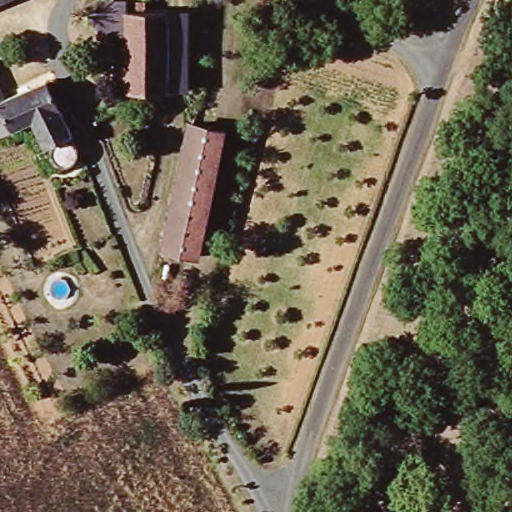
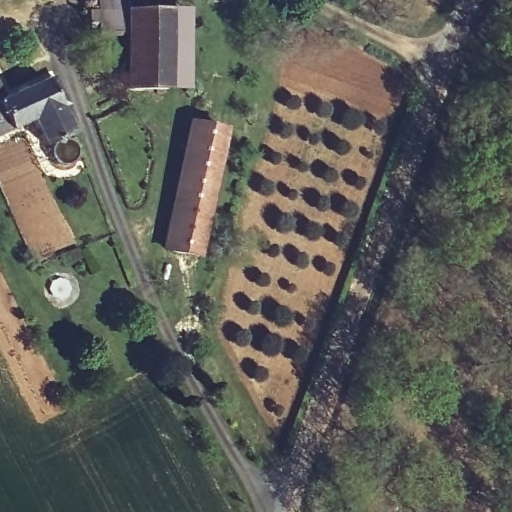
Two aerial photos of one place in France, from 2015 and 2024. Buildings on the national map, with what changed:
unchanged [(122,31),(98,31),(98,12),(122,11),(162,11),(162,88),(123,89),(122,31)]
unchanged [(162,11),(182,11),(182,88),(162,88),(162,11)]
unchanged [(2,95),(40,79),(65,134),(37,146),(23,121),(4,127),(0,119),(0,92),(2,95)]
unchanged [(186,123),(218,129),(193,255),(162,249),(186,123)]
unchanged [(60,141),(64,145),(67,150),(67,155),(62,161),(57,164),(52,164),(45,160),(43,155),(43,149),(47,143),(52,141),(60,141)]

